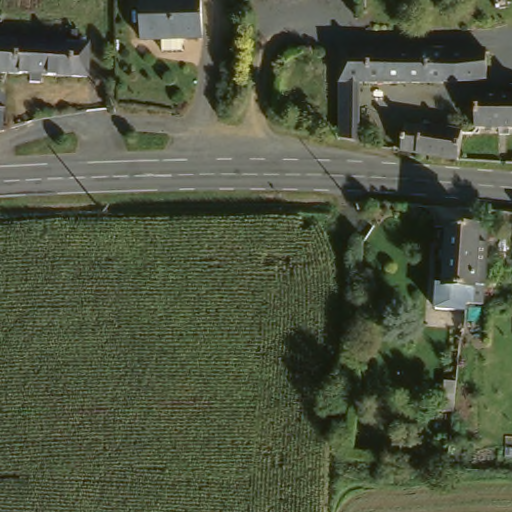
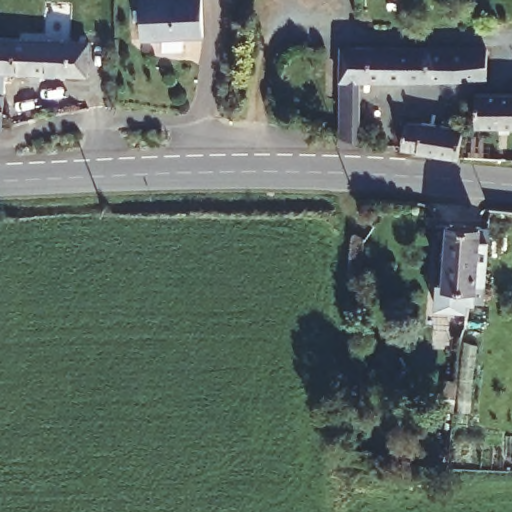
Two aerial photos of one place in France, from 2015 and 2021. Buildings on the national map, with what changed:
unchanged [(140,38),(140,0),(200,0),(200,38),(140,38)]
unchanged [(5,70),(4,95),(10,95),(10,131),(0,133),(0,38),(91,41),(89,75),(5,70)]
unchanged [(362,77),(361,143),(342,142),(342,132),(345,49),(395,48),(396,48),(480,45),(480,76),(362,77)]
unchanged [(480,100),(512,98),(512,127),(480,127),(480,100)]
unchanged [(406,151),(407,126),(464,127),(463,154),(406,151)]
unchanged [(487,231),(482,308),(463,307),(444,306),(447,232),(447,229),(467,230),(487,231)]
unchanged [(451,415),(453,386),(467,387),(465,417),(451,415)]

